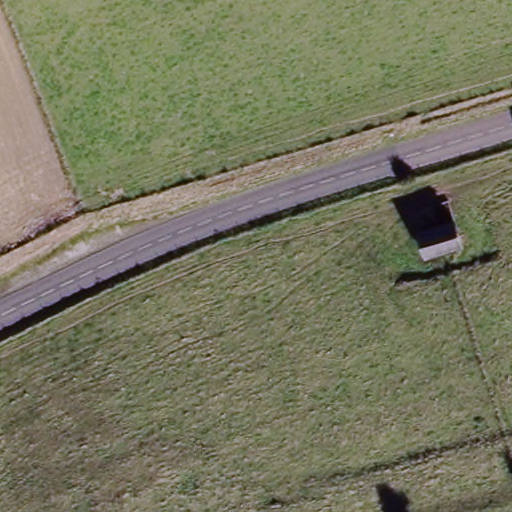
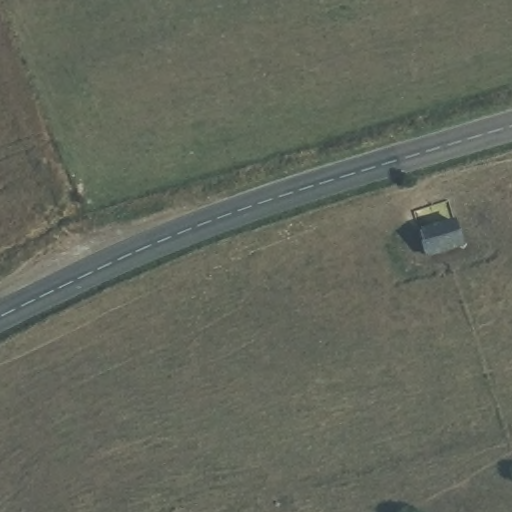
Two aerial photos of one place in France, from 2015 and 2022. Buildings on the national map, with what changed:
unchanged [(424,256),(415,235),(452,219),(460,241),(424,256)]

